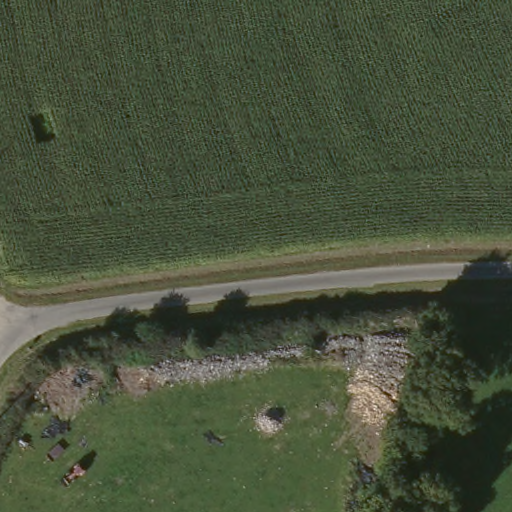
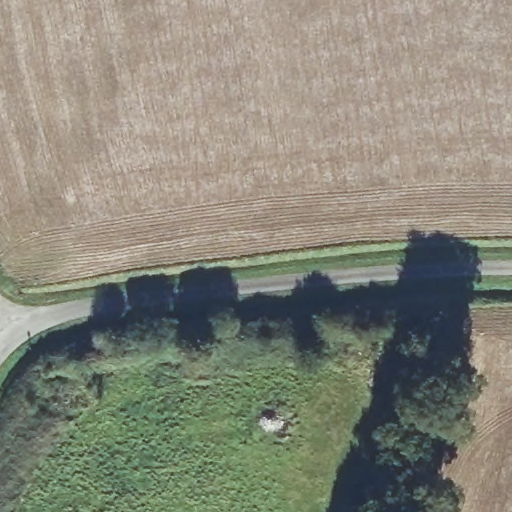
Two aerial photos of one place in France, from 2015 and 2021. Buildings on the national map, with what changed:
[]

